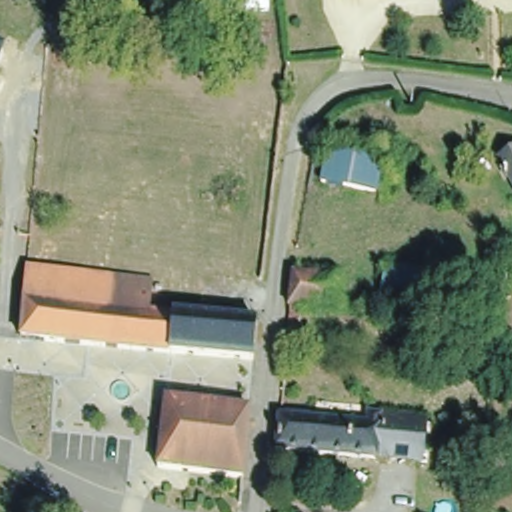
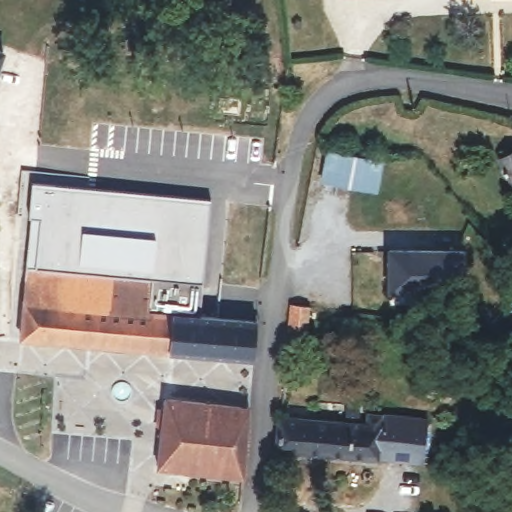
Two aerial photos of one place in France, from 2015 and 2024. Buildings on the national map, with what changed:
unchanged [(0,47),(0,36),(4,37),(0,47)]
unchanged [(491,149),(512,139),(512,183),(491,149)]
unchanged [(320,146),(376,154),(371,186),(316,176),(320,146)]
new [(173,309),(150,308),(151,276),(114,271),(27,263),(29,217),(32,184),(210,200),(202,278),(199,311),(173,309)]
unchanged [(448,245),(450,289),(400,290),(400,246),(448,245)]
unchanged [(27,263),(114,271),(111,304),(150,308),(173,309),(170,347),(21,334),(27,263)]
new [(114,271),(151,276),(150,308),(111,304),(114,271)]
demolished [(289,305),(293,273),(340,279),(337,311),(289,305)]
unchanged [(170,347),(173,309),(257,316),(254,354),(170,347)]
unchanged [(244,478),(157,468),(165,399),(250,408),(244,478)]
unchanged [(279,416),(281,416),(367,423),(368,412),(426,417),(422,463),(276,451),(279,416)]

